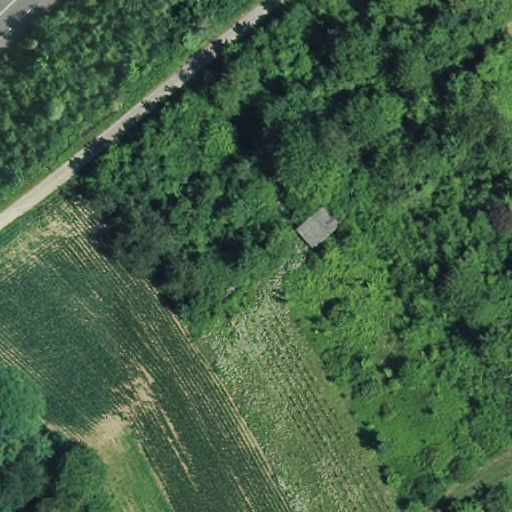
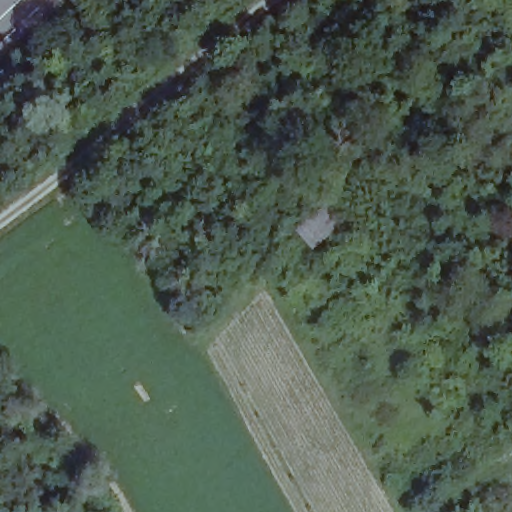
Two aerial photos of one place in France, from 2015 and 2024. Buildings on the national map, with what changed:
unchanged [(328,208),(341,223),(316,247),(302,232),(328,208)]

